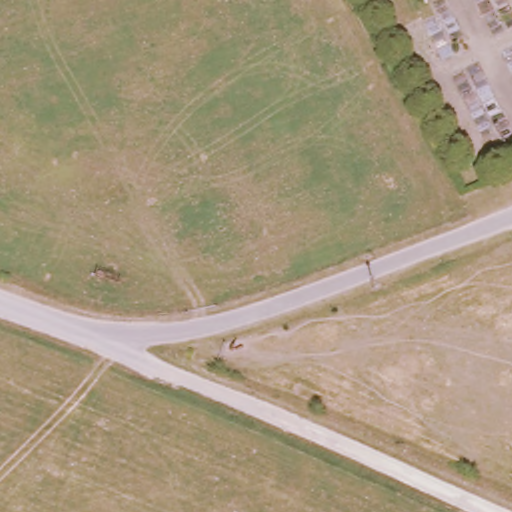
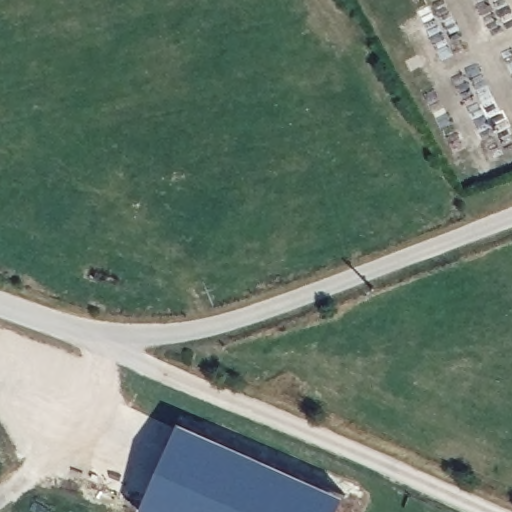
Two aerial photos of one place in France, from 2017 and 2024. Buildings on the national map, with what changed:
new [(347,493),(338,512),(140,512),(180,420),(347,493)]

